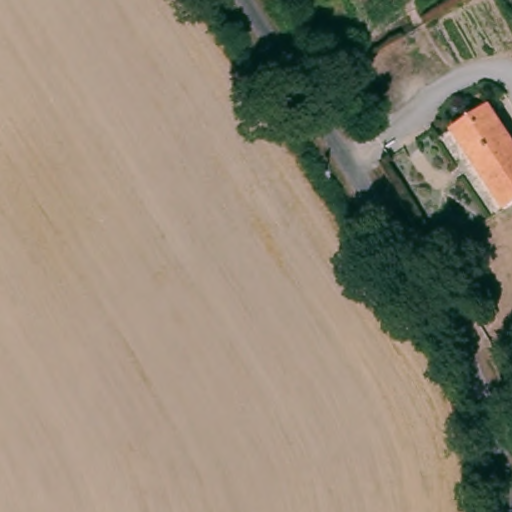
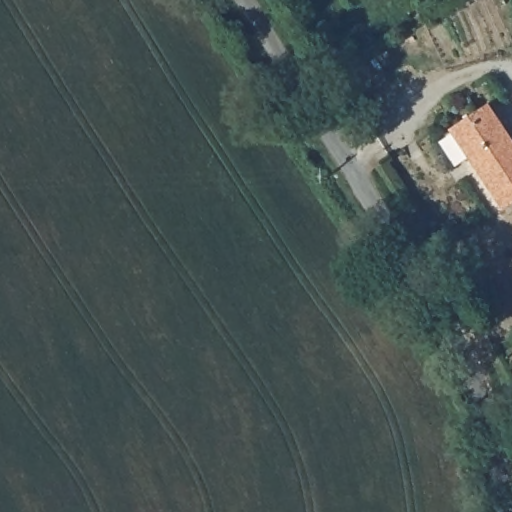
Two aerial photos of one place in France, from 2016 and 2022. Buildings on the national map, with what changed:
unchanged [(490,105),(512,139),(512,209),(508,212),(454,129),(490,105)]
unchanged [(486,298),(455,244),(478,231),(508,286),(486,298)]

